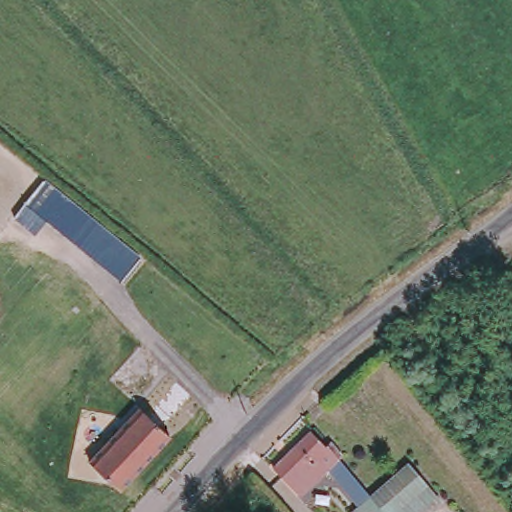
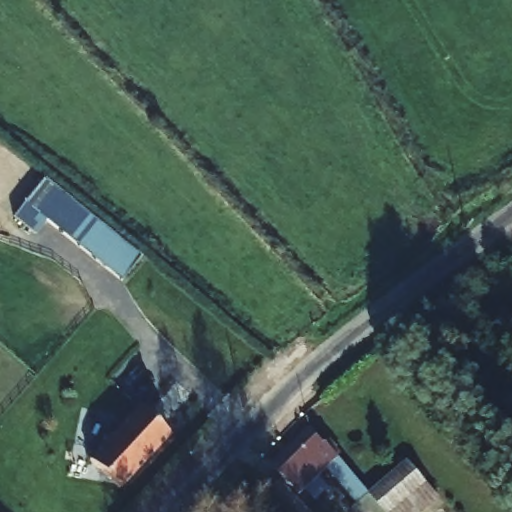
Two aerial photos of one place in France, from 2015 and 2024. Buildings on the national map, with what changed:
unchanged [(43,180),(141,260),(123,282),(43,222),(33,234),(15,217),(43,180)]
unchanged [(178,435),(125,492),(96,463),(112,445),(100,433),(134,395),(178,435)]
unchanged [(330,466),(305,489),(291,475),(289,476),(279,465),(313,430),(326,445),(329,442),(374,495),(378,492),(394,512),(355,512),(364,505),(330,466)]
unchanged [(413,460),(443,498),(439,501),(426,512),(394,512),(378,492),(408,465),(413,460)]

